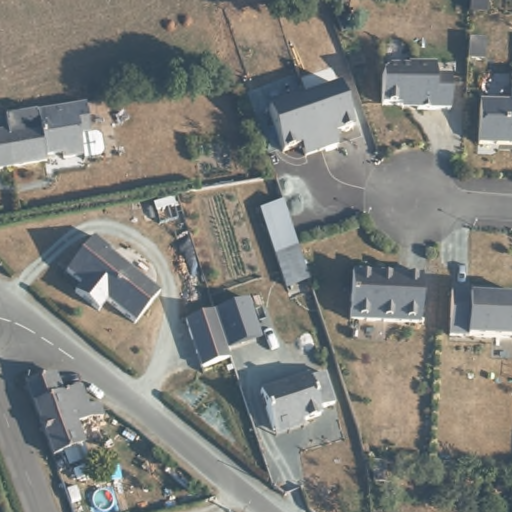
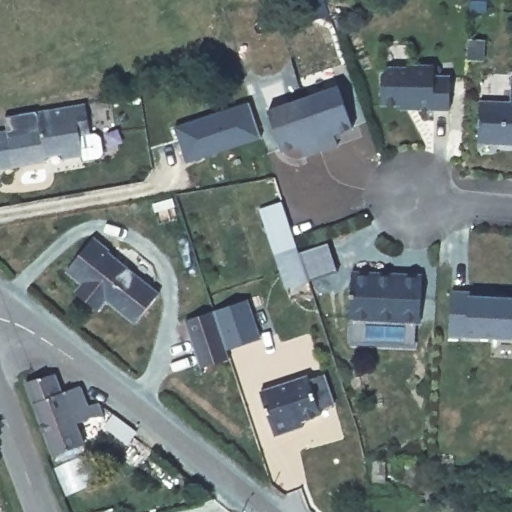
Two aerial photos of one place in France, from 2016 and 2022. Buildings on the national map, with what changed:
unchanged [(382,74),(390,67),(408,67),(408,65),(435,66),(434,76),(450,77),(449,111),(416,110),(416,101),(402,100),(402,105),(381,104),(382,74)]
unchanged [(480,100),(511,102),(512,83),(512,144),(478,142),(480,100)]
unchanged [(337,88),(350,130),(331,136),(335,147),(301,157),(298,146),(279,152),(266,110),(337,88)]
unchanged [(90,134),(78,137),(81,156),(63,159),(60,151),(43,154),(45,159),(0,166),(0,130),(38,124),(38,107),(84,101),(88,125),(90,134)]
new [(250,101),(260,137),(185,159),(175,124),(250,101)]
unchanged [(288,243),(297,278),(275,285),(256,215),(279,209),(288,243)]
unchanged [(155,295),(125,327),(101,307),(93,317),(65,293),(73,285),(60,273),(90,241),(155,295)]
unchanged [(429,277),(426,325),(342,320),(344,272),(429,277)]
unchanged [(488,293),(488,297),(512,299),(512,339),(447,335),(450,291),(488,293)]
unchanged [(242,344),(221,351),(210,310),(245,301),(250,317),(257,340),(242,344)]
unchanged [(221,351),(223,358),(194,366),(181,317),(210,310),(221,351)]
unchanged [(95,416),(76,422),(84,440),(54,452),(28,379),(58,370),(64,387),(81,383),(95,416)]
unchanged [(332,402),(317,407),(319,413),(273,426),(260,386),(305,371),(307,377),(322,372),(332,402)]
unchanged [(155,448),(150,461),(140,457),(130,477),(111,466),(126,438),(106,424),(115,412),(135,427),(133,432),(155,448)]

